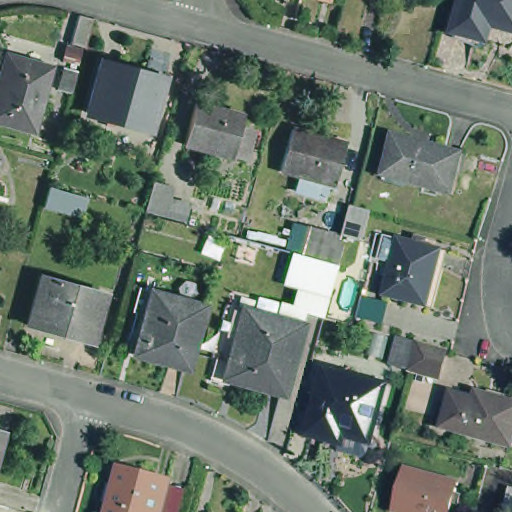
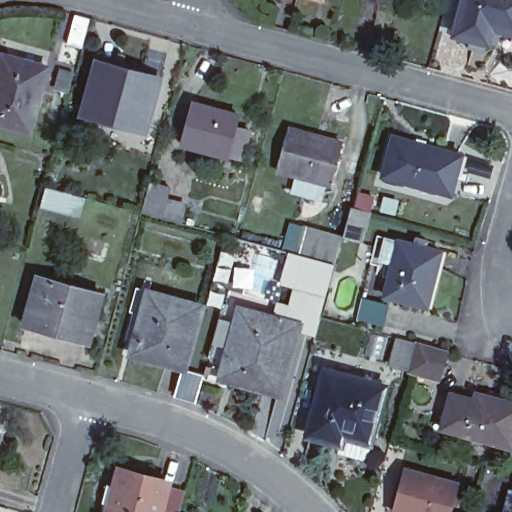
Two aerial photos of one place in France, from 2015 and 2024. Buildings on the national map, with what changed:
unchanged [(489,37),(486,39),(481,37),(460,31),(462,25),(468,0),(512,0),(512,22),(499,19),(494,33),(493,35),(491,36),(489,37)]
unchanged [(91,23),(84,49),(70,45),(78,15),(93,19),(91,23)]
unchanged [(6,51),(48,64),(30,126),(0,118),(0,65),(3,66),(6,51)]
unchanged [(79,112),(93,65),(95,56),(158,75),(156,82),(154,89),(143,130),(79,112)]
unchanged [(208,146),(211,137),(183,130),(194,89),(241,101),(238,110),(238,112),(252,116),(244,145),(230,141),(229,142),(226,141),(223,150),(208,146)]
unchanged [(348,127),(338,170),(284,156),(295,113),(348,127)]
unchanged [(462,151),(452,190),(384,171),(394,132),(462,151)]
unchanged [(4,160),(0,176),(0,159),(4,160)]
unchanged [(186,222),(168,217),(148,212),(156,181),(176,187),(173,200),(191,205),(186,222)]
unchanged [(69,215),(40,207),(46,186),(74,194),(84,196),(79,217),(69,215)]
unchanged [(370,214),(363,244),(346,239),(354,209),(370,214)]
unchanged [(324,260),(308,255),(299,252),(306,226),(314,229),(330,233),(344,237),(338,263),(324,260)]
unchanged [(438,244),(422,298),(382,285),(399,231),(438,244)]
unchanged [(337,265),(329,293),(309,289),(317,259),(337,265)]
unchanged [(23,314),(34,272),(99,290),(86,339),(58,332),(21,322),(23,314)]
unchanged [(193,295),(176,358),(123,345),(138,282),(193,295)]
unchanged [(284,385),(224,370),(223,375),(210,371),(229,295),(241,298),(302,315),(284,385)]
unchanged [(442,378),(415,371),(399,366),(406,340),(423,344),(449,351),(442,378)]
unchanged [(340,445),(325,441),(306,436),(321,371),(341,376),(344,370),(358,373),(356,380),(381,387),(366,443),(364,452),(340,445)]
unchanged [(512,442),(471,431),(447,425),(456,388),(459,389),(480,394),(483,387),(512,395),(512,442)]
unchanged [(1,427),(0,430),(0,427),(1,427)]
unchanged [(396,501),(408,460),(459,475),(457,485),(463,486),(460,496),(454,495),(448,512),(425,512),(426,510),(396,501)]
unchanged [(111,495),(115,479),(123,480),(128,463),(173,475),(164,512),(114,512),(118,497),(111,495)]
unchanged [(512,512),(505,512),(511,491),(512,491),(512,512)]

